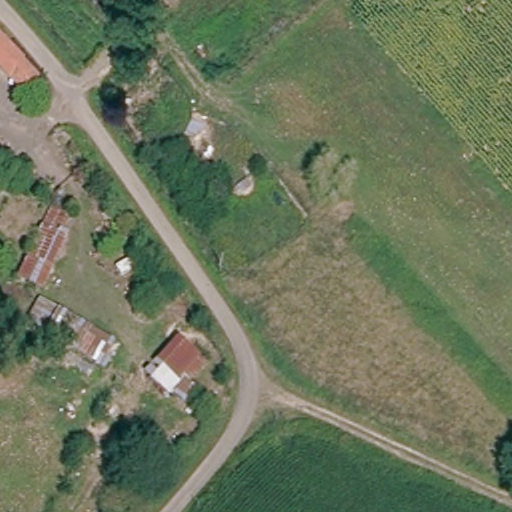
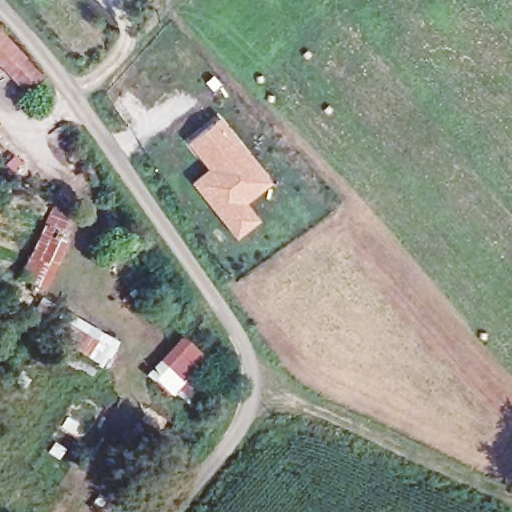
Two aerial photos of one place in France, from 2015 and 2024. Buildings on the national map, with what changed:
demolished [(22,67),(0,46),(0,43),(10,31),(34,54),(22,67)]
new [(24,85),(0,62),(0,38),(36,72),(24,85)]
new [(187,181),(204,167),(184,141),(216,114),(268,180),(242,200),(255,219),(231,236),(187,181)]
unchanged [(60,229),(73,235),(42,291),(15,276),(49,207),(70,214),(60,229)]
unchanged [(98,370),(22,325),(35,299),(112,341),(98,370)]
unchanged [(137,371),(178,332),(203,362),(180,381),(189,386),(173,406),(137,371)]

